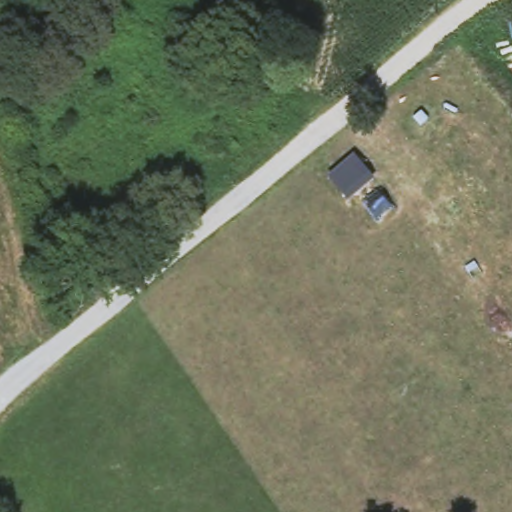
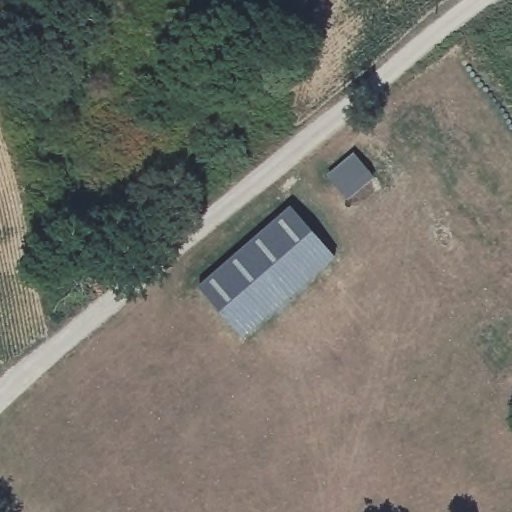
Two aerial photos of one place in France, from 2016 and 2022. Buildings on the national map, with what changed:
unchanged [(328,174),(354,153),(374,178),(347,200),(328,174)]
new [(292,211),(333,261),(240,337),(199,287),(292,211)]

